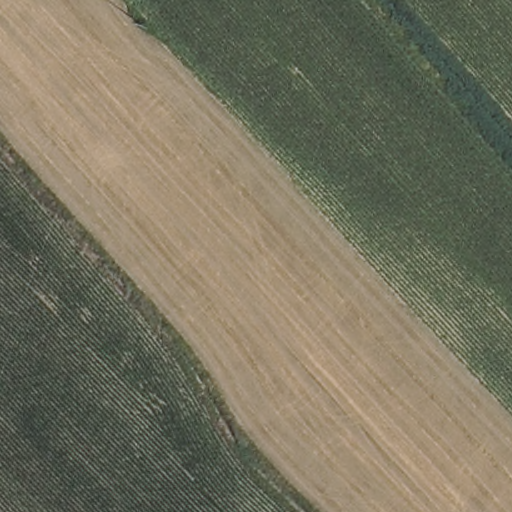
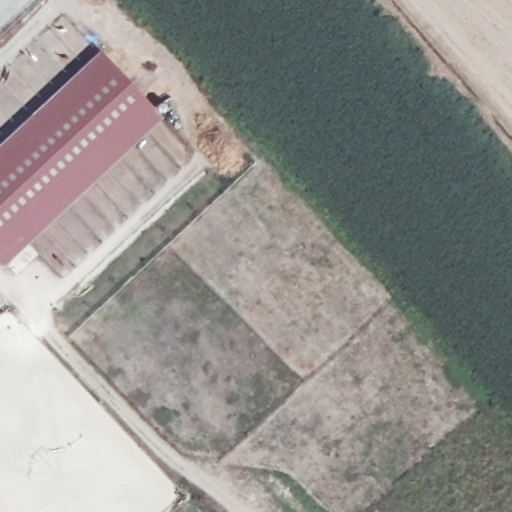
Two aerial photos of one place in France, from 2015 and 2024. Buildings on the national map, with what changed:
new [(101,51),(163,117),(5,264),(0,259),(0,144),(101,51)]

